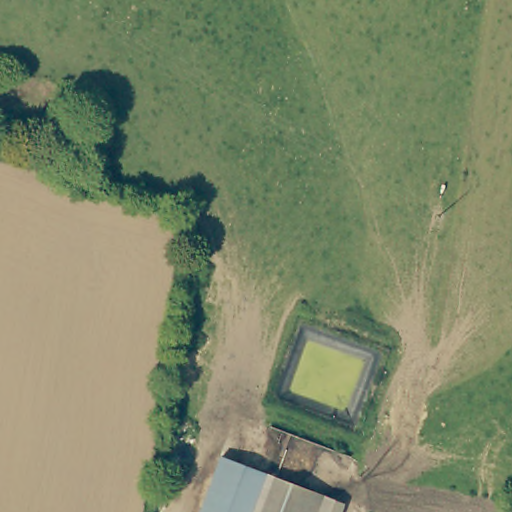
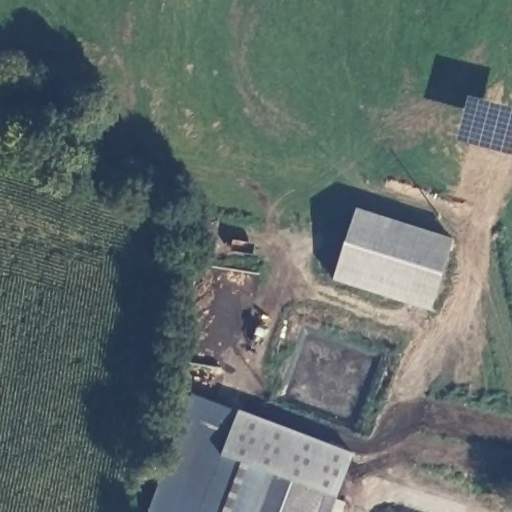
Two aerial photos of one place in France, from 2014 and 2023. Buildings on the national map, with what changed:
new [(333,281),(358,209),(453,241),(430,312),(333,281)]
new [(213,405),(238,414),(240,410),(355,455),(337,500),(347,502),(344,512),(173,512),(213,405)]

